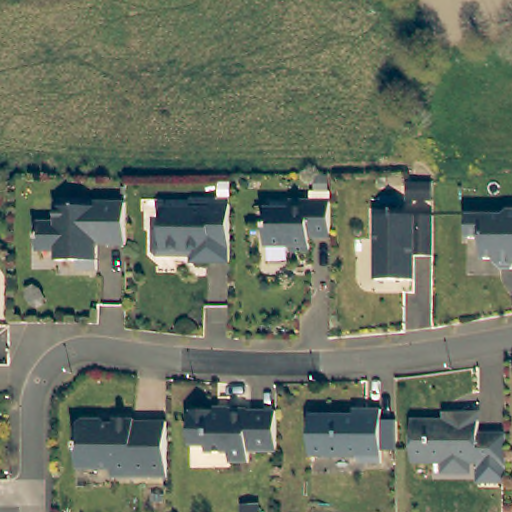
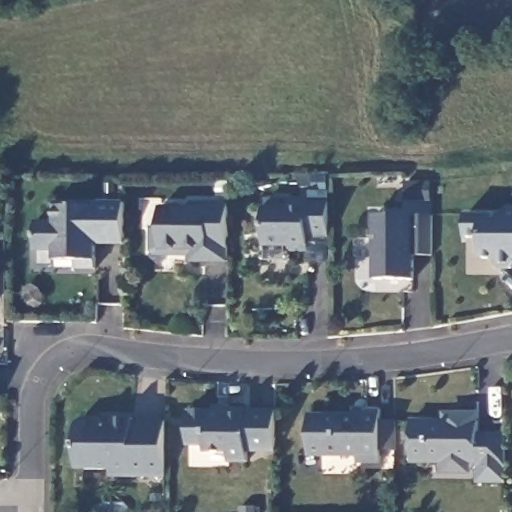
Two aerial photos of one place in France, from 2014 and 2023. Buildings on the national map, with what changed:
unchanged [(308,233),(304,233),(305,247),(285,247),(285,241),(261,241),(261,204),(285,204),(285,195),(325,195),(325,227),(325,232),(308,233)]
unchanged [(219,252),(219,259),(181,259),(181,247),(168,247),(168,253),(147,253),(144,249),(144,228),(152,228),(151,208),(177,208),(182,203),(219,203),(219,252)]
unchanged [(121,245),(120,245),(101,245),(100,241),(91,241),(91,270),(72,270),(72,262),(51,262),(51,252),(31,252),(31,224),(51,224),(51,204),(120,204),(121,245)]
unchanged [(498,261),(498,256),(485,256),(484,235),(469,235),(469,212),(505,212),(510,207),(512,207),(512,265),(503,265),(498,261)]
unchanged [(410,256),(410,280),(373,281),(373,217),(409,215),(428,214),(428,220),(430,255),(410,256)]
unchanged [(276,449),(247,449),(247,459),(229,460),(229,451),(207,451),(207,444),(190,444),(189,409),(214,409),(214,411),(228,411),(228,408),(247,408),(247,409),(276,409),(276,449)]
unchanged [(392,451),(375,452),(375,462),(358,462),(358,456),(305,456),(305,415),(359,415),(358,410),(375,409),(375,421),(392,421),(392,451)]
unchanged [(446,471),(446,461),(413,462),(412,423),(446,423),(446,415),(461,414),(481,414),(479,436),(507,434),(507,467),(478,467),(478,460),(470,460),(470,471),(446,471)]
unchanged [(161,474),(106,474),(106,468),(72,468),(71,424),(77,418),(89,418),(93,424),(107,424),(107,418),(127,418),(127,421),(160,420),(161,474)]

